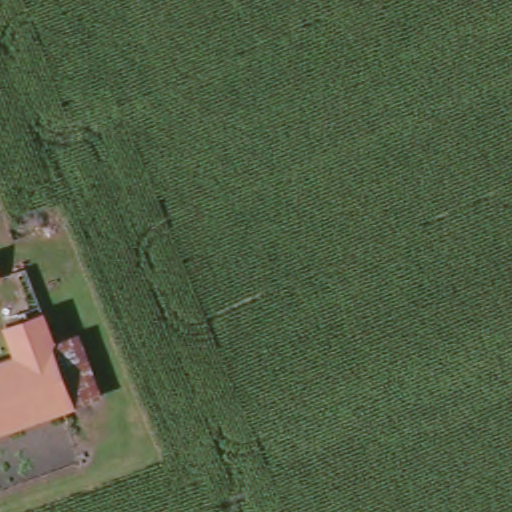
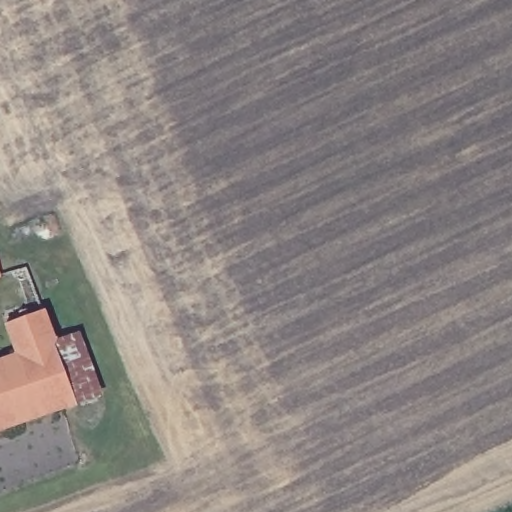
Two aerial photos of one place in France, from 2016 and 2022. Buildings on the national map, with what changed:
unchanged [(3,325),(24,317),(12,285),(7,270),(28,262),(34,278),(55,342),(74,406),(0,431),(0,361),(14,356),(3,325)]
unchanged [(0,272),(0,270),(1,272),(0,272)]
unchanged [(82,332),(104,395),(74,406),(55,342),(82,332)]

